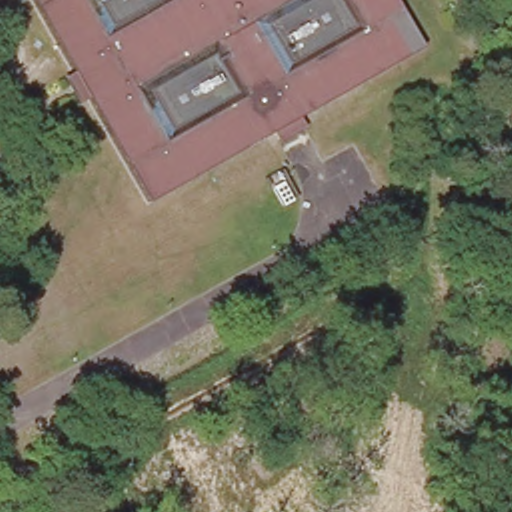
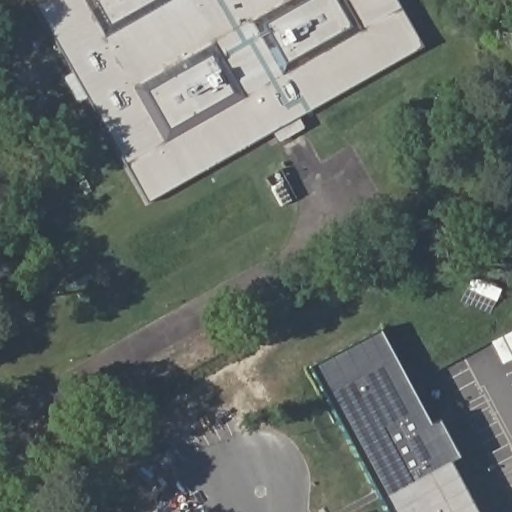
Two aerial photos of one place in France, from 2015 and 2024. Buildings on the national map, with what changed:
unchanged [(337,84),(317,96),(248,138),(151,195),(41,0),(91,0),(110,31),(162,0),(286,0),(257,17),(285,65),(359,22),(345,0),(396,0),(417,37),(337,84)]
new [(96,0),(152,0),(110,23),(96,0)]
new [(265,24),(307,0),(333,0),(348,26),(286,62),(265,24)]
new [(169,129),(149,92),(210,56),(232,92),(169,129)]
new [(384,502),(316,372),(382,335),(433,428),(441,423),(460,462),(453,466),(478,512),(389,512),(384,502)]

